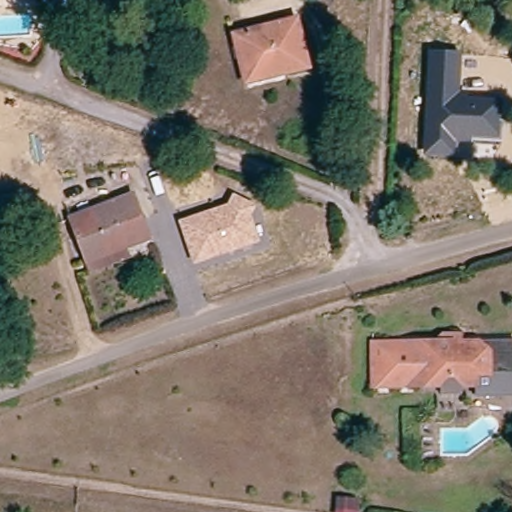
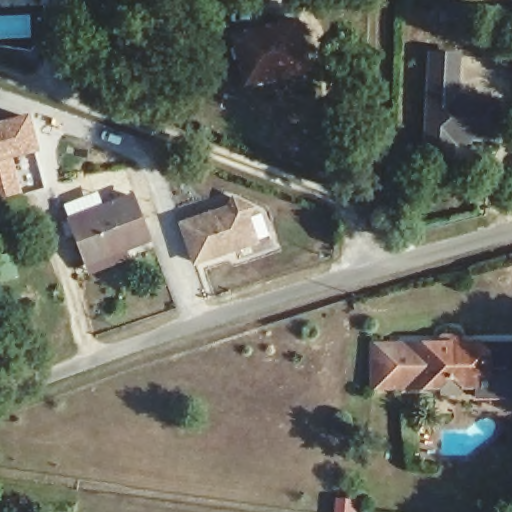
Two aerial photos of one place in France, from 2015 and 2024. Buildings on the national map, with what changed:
unchanged [(245,84),(235,44),(295,28),(307,75),(287,80),(285,74),(245,84)]
unchanged [(460,51),(460,96),(504,98),(502,146),(456,144),(455,158),(423,157),(428,51),(460,51)]
new [(30,113),(39,150),(11,157),(22,193),(0,198),(0,120),(30,113)]
demolished [(28,146),(55,141),(60,170),(13,179),(5,133),(25,130),(28,146)]
unchanged [(178,221),(227,203),(232,194),(257,204),(251,215),(260,243),(192,267),(178,221)]
unchanged [(102,210),(131,199),(147,241),(122,250),(126,258),(91,272),(66,208),(97,197),(102,210)]
unchanged [(473,393),(460,393),(460,401),(435,401),(435,393),(372,394),(372,351),(445,350),(445,342),(458,342),(458,350),(478,349),(512,349),(512,402),(473,403),(473,393)]

